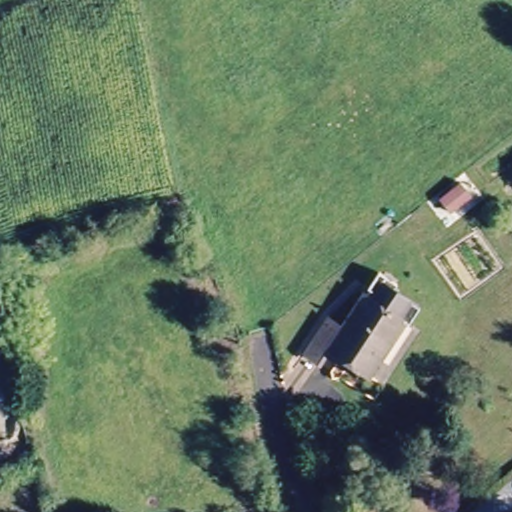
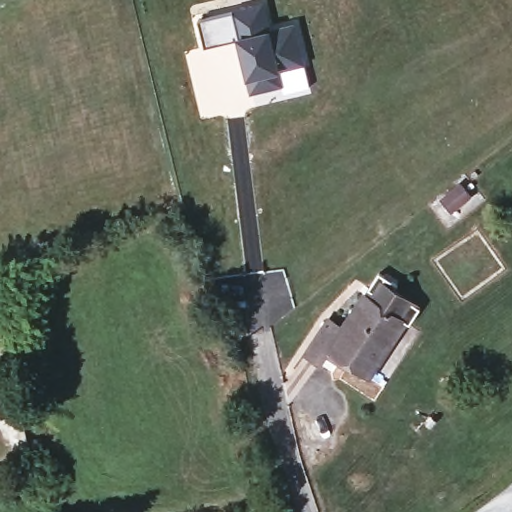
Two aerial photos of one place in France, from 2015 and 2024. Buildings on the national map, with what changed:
new [(268,29),(296,24),(305,64),(280,69),(280,71),(283,85),(249,92),(247,79),(238,37),(205,46),(199,17),(263,1),(268,29)]
unchanged [(392,366),(384,380),(346,357),(337,377),(318,365),(340,328),(351,333),(372,295),(405,313),(417,320),(392,366)]

